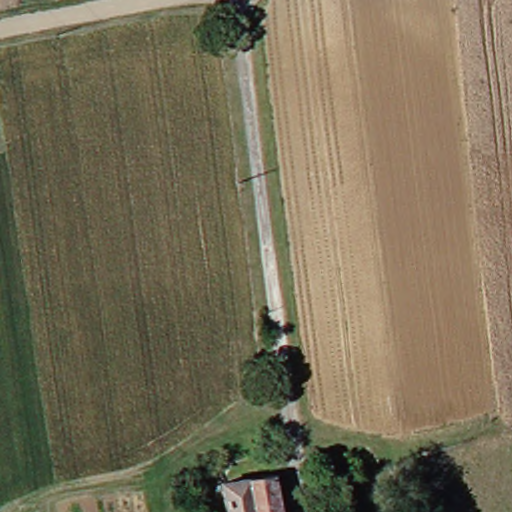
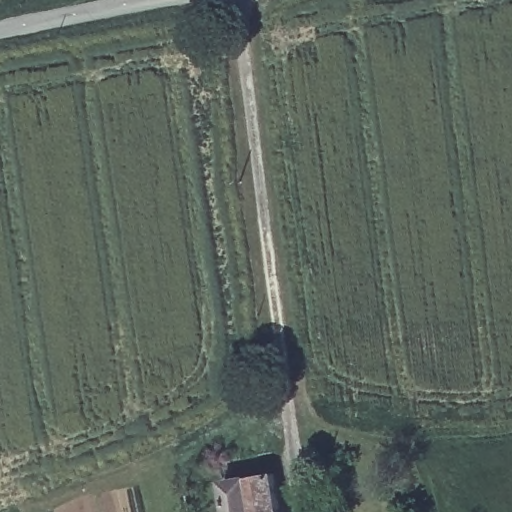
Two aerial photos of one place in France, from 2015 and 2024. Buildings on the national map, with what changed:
unchanged [(288,512),(227,512),(224,486),(256,484),(286,480),(288,512)]

